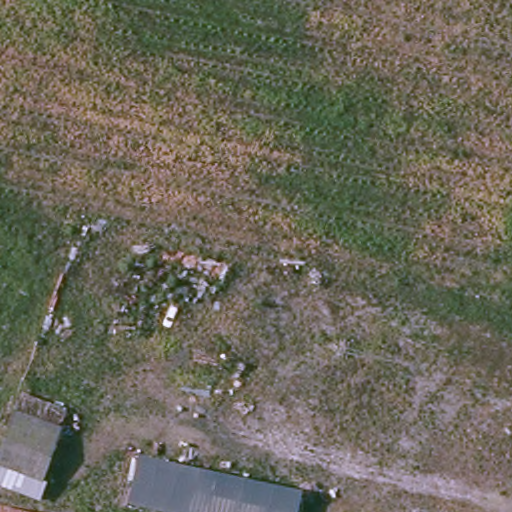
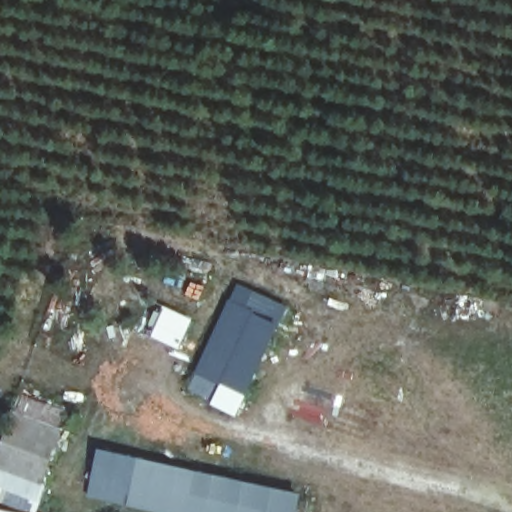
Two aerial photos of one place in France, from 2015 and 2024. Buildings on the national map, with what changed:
new [(279,323),(246,394),(222,382),(220,385),(195,371),(228,299),(253,311),(279,323)]
unchanged [(37,500),(0,487),(0,442),(15,393),(65,409),(37,500)]
new [(87,494),(98,449),(137,457),(127,504),(87,494)]
unchanged [(187,512),(163,512),(127,504),(137,457),(197,470),(187,512)]
unchanged [(297,512),(187,512),(197,470),(301,492),(297,512)]
unchanged [(0,512),(0,511),(6,512),(0,512)]

